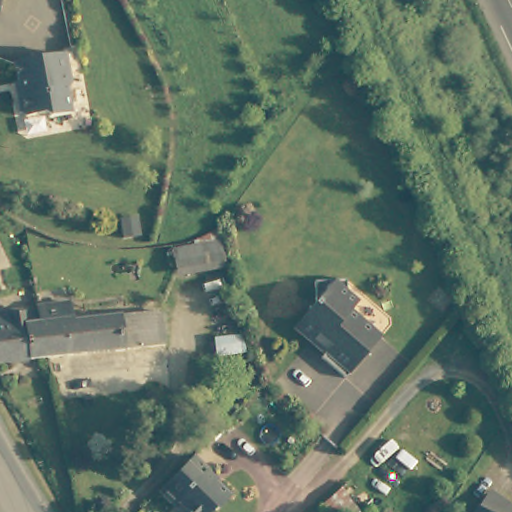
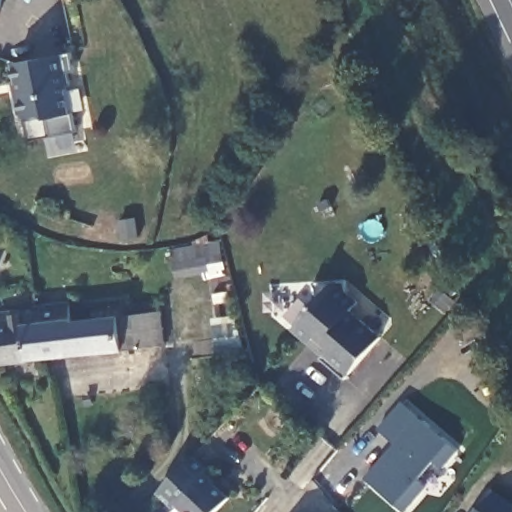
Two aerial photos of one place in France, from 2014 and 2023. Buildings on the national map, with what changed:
unchanged [(72,78),(69,85),(73,108),(49,112),(44,109),(26,112),(21,108),(19,94),(21,87),(19,79),(17,76),(14,57),(66,48),(72,78)]
unchanged [(226,262),(175,271),(172,251),(222,241),(226,262)]
demolished [(168,275),(134,278),(133,261),(166,258),(168,275)]
unchanged [(295,323),(317,297),(316,277),(349,274),(351,291),(361,300),(353,310),(383,337),(348,376),(323,353),(325,350),(313,339),(295,323)]
unchanged [(69,299),(73,317),(161,309),(165,340),(130,346),(48,356),(42,319),(39,318),(37,307),(37,303),(69,299)]
unchanged [(42,319),(48,356),(0,361),(0,309),(10,308),(11,310),(37,307),(39,318),(42,319)]
new [(397,443),(380,428),(402,401),(459,450),(444,468),(434,461),(419,477),(428,485),(407,511),(366,479),(397,443)]
unchanged [(208,467),(204,471),(229,495),(215,511),(213,509),(209,512),(189,512),(179,502),(174,505),(158,489),(193,453),(208,467)]
demolished [(322,502),(339,487),(340,486),(361,509),(357,512),(331,512),(322,502)]
unchanged [(484,497),(508,512),(475,512),(484,497)]

